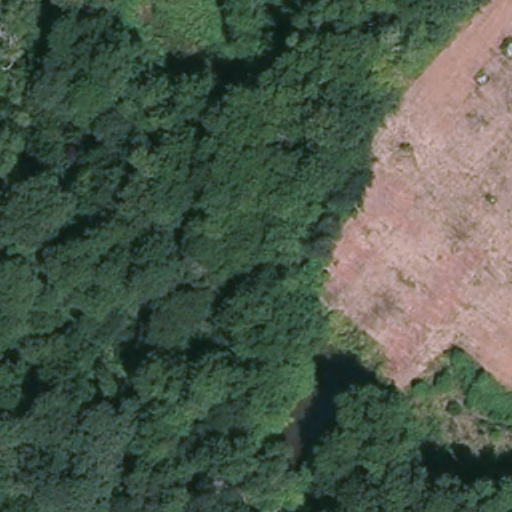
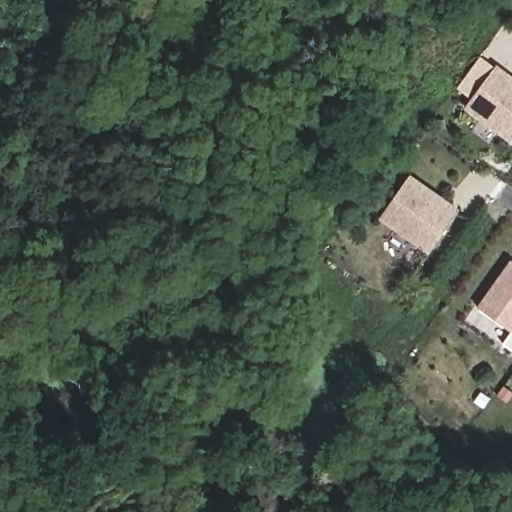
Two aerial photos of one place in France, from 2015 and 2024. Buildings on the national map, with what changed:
unchanged [(0,6),(0,0),(31,0),(6,16),(0,6)]
new [(465,109),(497,66),(512,76),(512,143),(465,109)]
new [(381,220),(412,175),(462,209),(430,254),(381,220)]
new [(479,308),(512,262),(512,332),(479,308)]
new [(504,345),(512,332),(512,350),(504,345)]

